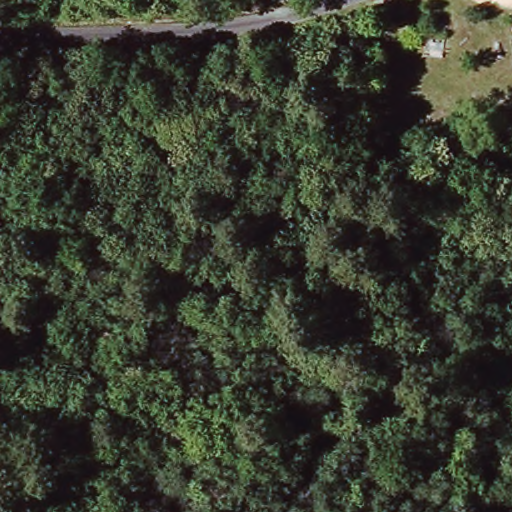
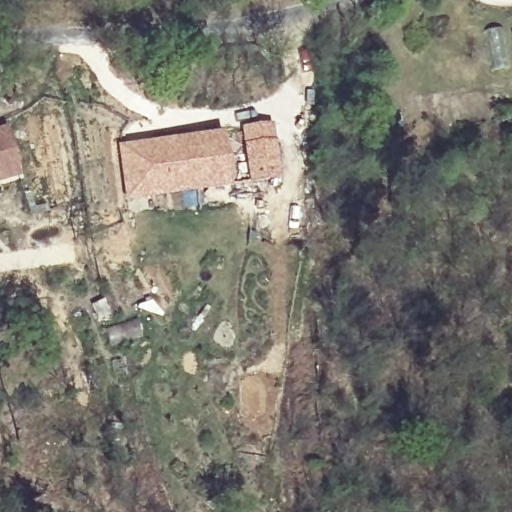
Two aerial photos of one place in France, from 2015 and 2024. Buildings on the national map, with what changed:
new [(235,129),(269,122),(277,182),(246,185),(245,179),(227,181),(228,189),(122,201),(113,145),(221,131),(235,129)]
new [(19,178),(0,185),(0,127),(4,126),(19,178)]

